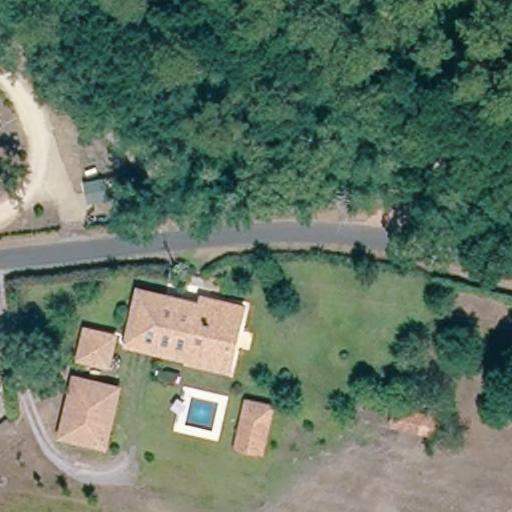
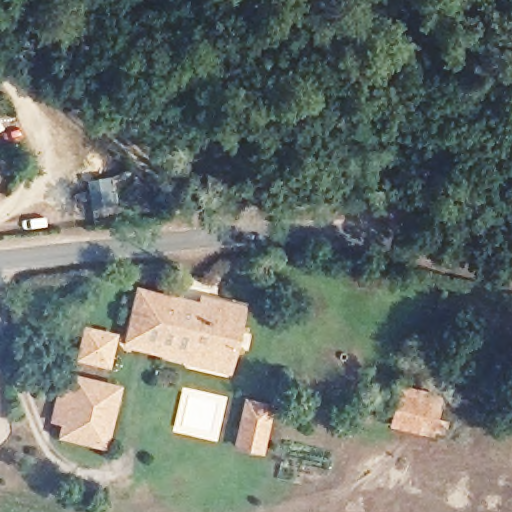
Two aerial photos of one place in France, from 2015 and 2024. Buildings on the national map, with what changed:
unchanged [(96,285),(114,290),(107,319),(78,312),(84,289),(85,282),(96,285)]
unchanged [(153,351),(124,345),(135,294),(164,300),(153,351)]
unchanged [(226,375),(183,365),(184,359),(153,351),(164,300),(196,307),(198,299),(240,309),(226,375)]
unchanged [(107,361),(102,360),(69,352),(76,321),(108,329),(114,330),(107,361)]
unchanged [(67,393),(70,377),(78,378),(120,387),(108,445),(58,435),(67,393)]
new [(390,427),(398,392),(441,401),(433,436),(390,427)]
unchanged [(246,402),(269,409),(274,410),(262,455),(234,447),(246,402)]

